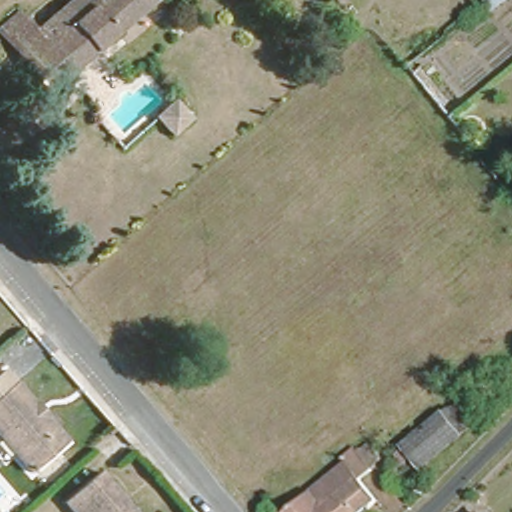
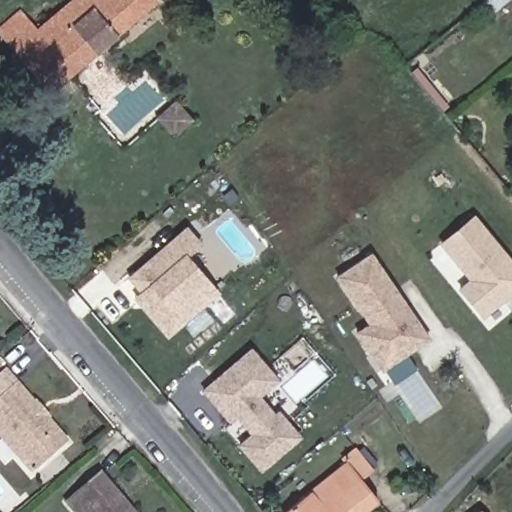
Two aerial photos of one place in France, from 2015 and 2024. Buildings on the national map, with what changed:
demolished [(58,9),(56,6),(34,30),(32,31),(65,77),(48,90),(0,33),(0,29),(35,0),(88,0),(68,16),(58,9)]
new [(0,33),(0,27),(19,9),(37,27),(68,0),(153,0),(156,2),(53,91),(0,33)]
demolished [(68,67),(45,41),(69,20),(90,0),(146,0),(98,43),(68,67)]
new [(177,101),(193,118),(176,135),(159,118),(177,101)]
new [(485,315),(463,288),(475,278),(444,242),(476,216),(512,259),(512,283),(510,284),(512,287),(512,293),(505,298),(485,315)]
new [(133,277),(190,228),(202,242),(189,254),(208,276),(221,291),(209,302),(172,335),(147,307),(139,298),(146,291),(133,277)]
new [(375,254),(433,340),(386,371),(361,334),(374,325),(341,277),(375,254)]
new [(239,415),(233,420),(206,390),(254,348),(270,366),(280,378),(261,395),(278,415),(282,411),(304,436),(265,470),(249,452),(244,445),(256,434),(239,415)]
unchanged [(0,439),(0,386),(7,379),(36,414),(40,411),(51,423),(47,426),(69,453),(38,481),(20,461),(4,442),(0,439)]
demolished [(471,415),(461,427),(439,410),(452,397),(471,415)]
unchanged [(280,507),(346,454),(357,469),(344,482),(361,506),(354,512),(284,512),(280,507)]
unchanged [(116,495),(112,499),(119,506),(123,502),(131,512),(69,512),(61,503),(95,473),(116,495)]

